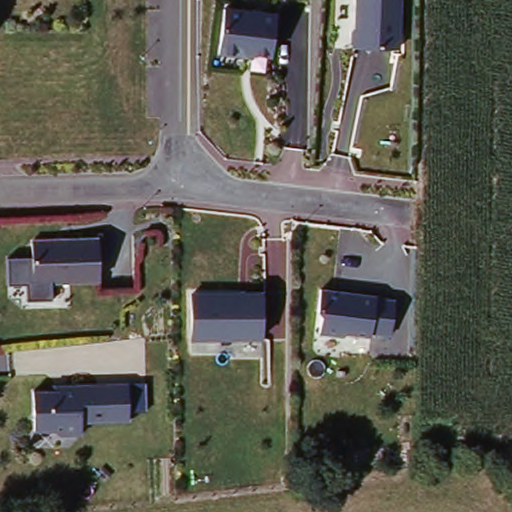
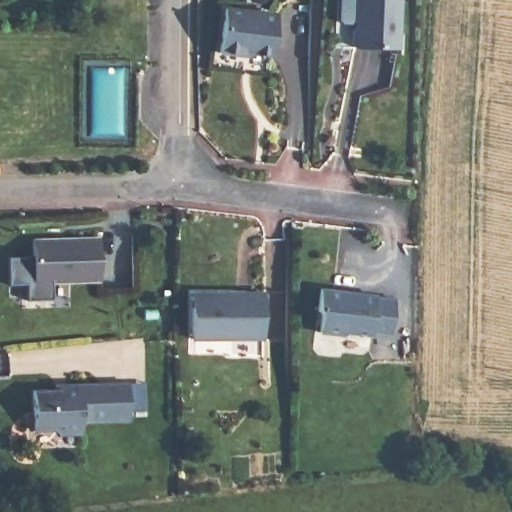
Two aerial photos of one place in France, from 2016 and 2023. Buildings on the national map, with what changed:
unchanged [(405,0),(402,47),(357,48),(357,0),(405,0)]
unchanged [(277,9),(273,57),(220,50),(226,2),(277,9)]
unchanged [(29,290),(28,245),(94,243),(96,286),(29,290)]
unchanged [(397,291),(395,333),(377,328),(376,333),(322,328),(323,287),(397,291)]
unchanged [(268,288),(266,337),(196,336),(194,292),(268,288)]
unchanged [(27,398),(61,395),(61,391),(124,386),(125,427),(79,431),(79,441),(32,444),(27,398)]

